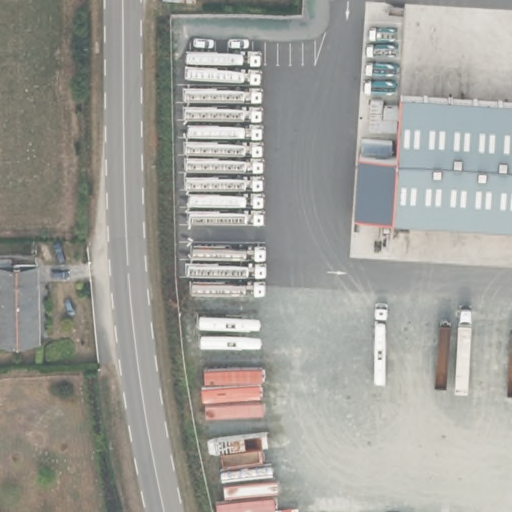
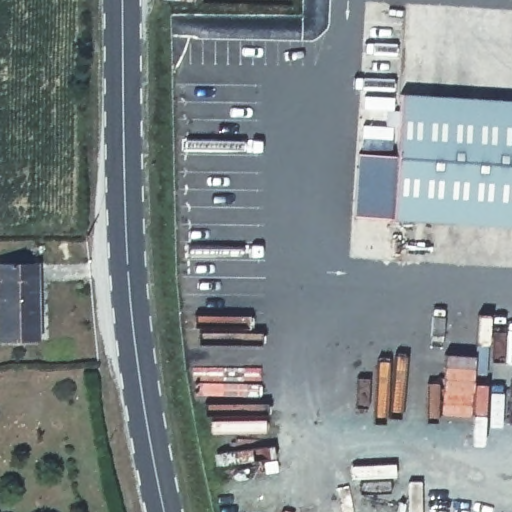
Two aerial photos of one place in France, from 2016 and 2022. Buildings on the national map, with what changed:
unchanged [(393,219),(399,91),(512,103),(512,227),(393,219)]
unchanged [(0,339),(0,264),(31,262),(36,338),(0,339)]

